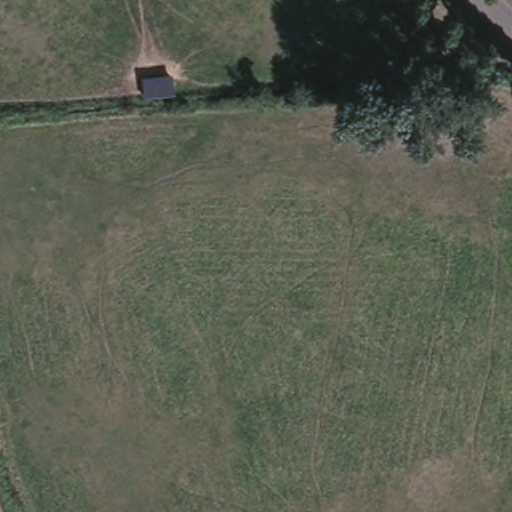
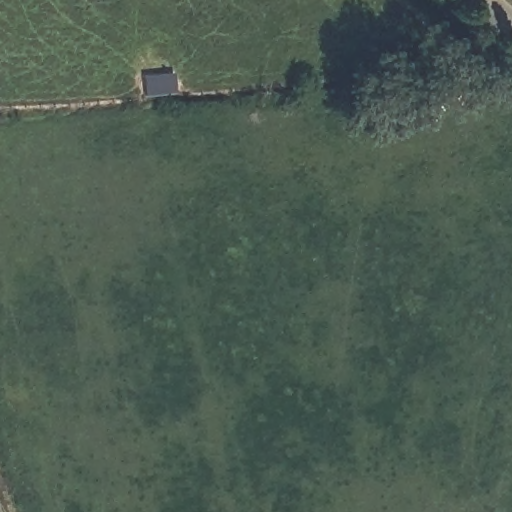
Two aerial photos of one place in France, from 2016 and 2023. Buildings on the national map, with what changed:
unchanged [(144,77),(173,74),(174,96),(145,98),(144,77)]

